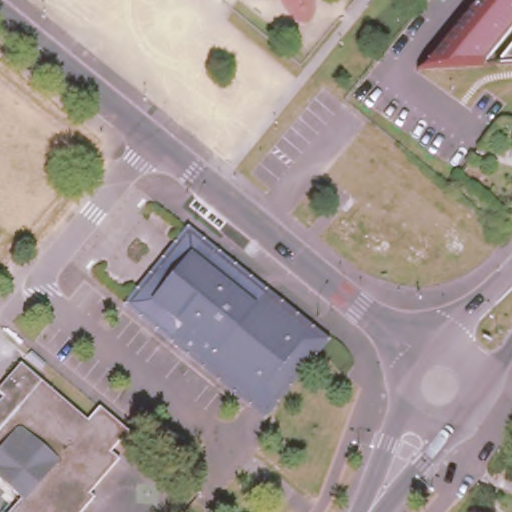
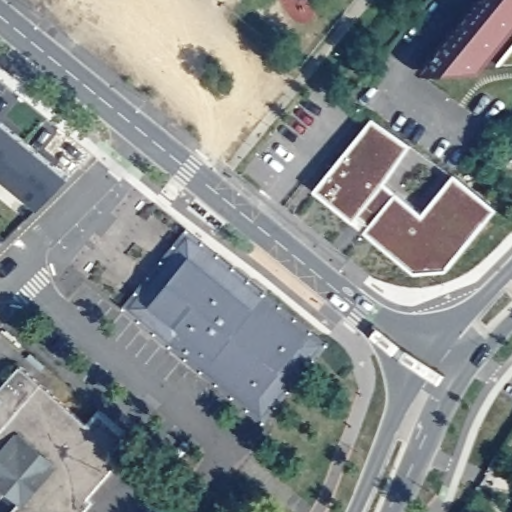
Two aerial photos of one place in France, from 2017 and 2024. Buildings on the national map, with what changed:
unchanged [(486,74),(448,44),(487,0),(512,0),(512,73),(486,74)]
new [(372,117),(410,144),(383,180),(421,211),(454,173),(496,208),(445,268),(412,272),(362,230),(369,222),(356,213),(352,220),(314,187),(372,117)]
new [(0,122),(22,140),(0,168),(0,122)]
new [(34,204),(0,176),(0,168),(22,140),(64,174),(34,204)]
demolished [(49,204),(51,206),(16,247),(15,247),(17,243),(0,230),(0,168),(47,206),(49,204)]
unchanged [(127,303),(137,292),(187,231),(191,226),(270,291),(266,296),(257,306),(194,255),(156,301),(219,352),(215,357),(207,368),(127,303)]
unchanged [(252,406),(250,403),(232,388),(207,368),(215,357),(219,352),(156,301),(194,255),(257,306),(266,296),(270,291),(315,328),(331,342),(321,354),(319,356),(281,403),(269,418),(252,406)]
unchanged [(93,498),(98,503),(90,512),(16,512),(26,501),(0,477),(0,410),(7,403),(0,396),(0,393),(25,367),(91,424),(103,411),(132,436),(115,457),(122,465),(93,498)]

